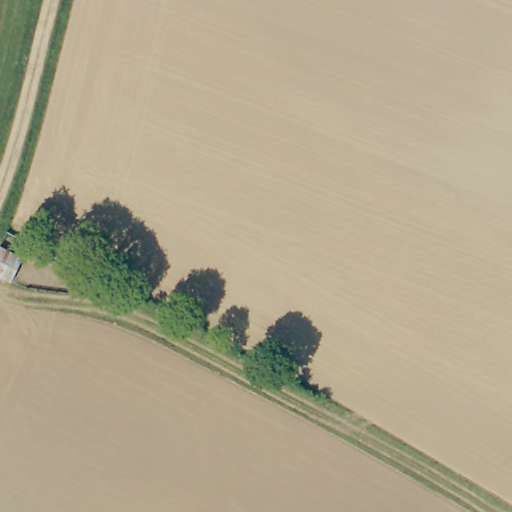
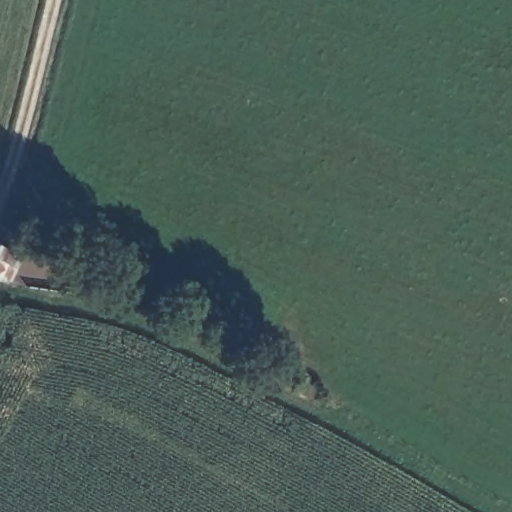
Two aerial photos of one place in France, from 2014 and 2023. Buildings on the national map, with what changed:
unchanged [(8,283),(0,279),(0,247),(17,256),(8,283)]

